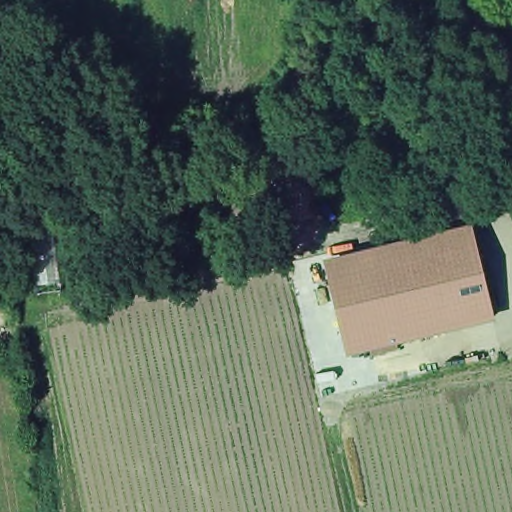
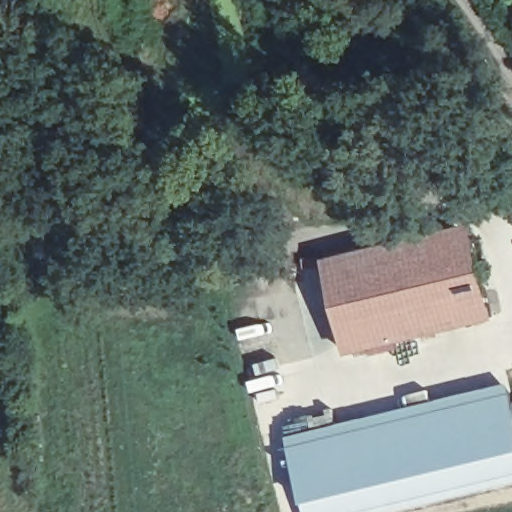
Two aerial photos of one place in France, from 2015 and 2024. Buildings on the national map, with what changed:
unchanged [(470,236),(472,242),(484,298),(487,315),(452,323),(402,333),(344,345),(339,346),(328,290),(323,267),(470,236)]
new [(511,386),(512,391),(512,486),(396,512),(306,512),(290,440),(511,386)]

